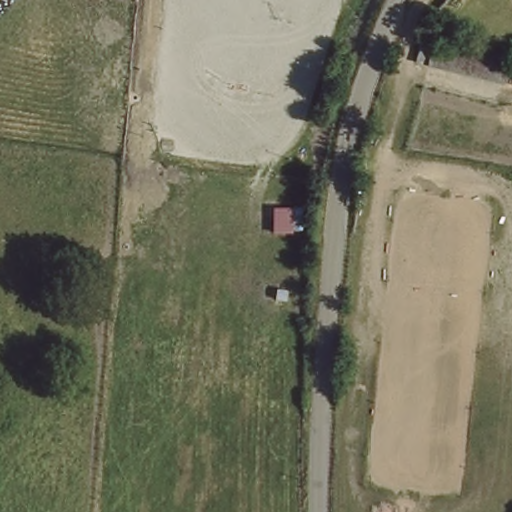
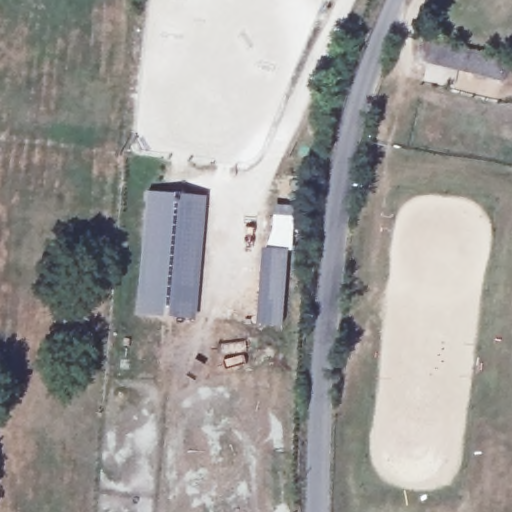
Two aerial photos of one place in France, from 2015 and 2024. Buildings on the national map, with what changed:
unchanged [(432,43),(448,47),(497,60),(499,61),(492,85),(418,66),(424,41),(432,43)]
new [(135,313),(146,189),(205,196),(194,318),(135,313)]

